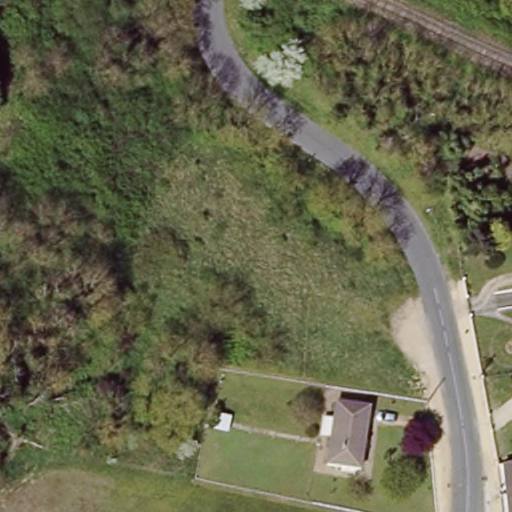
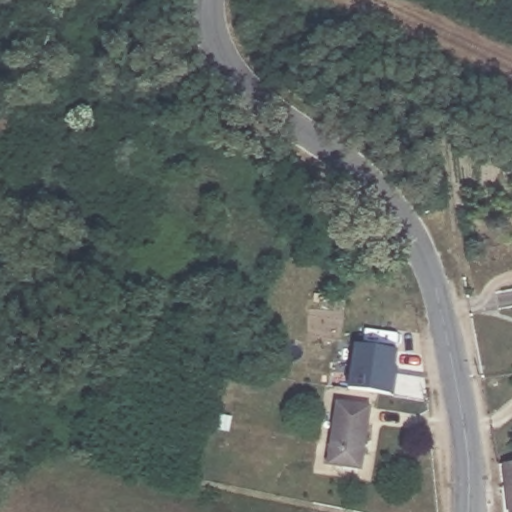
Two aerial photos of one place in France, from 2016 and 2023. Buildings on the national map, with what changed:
new [(389,396),(347,389),(354,346),(396,352),(389,396)]
unchanged [(376,406),(363,468),(332,461),(345,399),(376,406)]
unchanged [(512,460),(512,499),(507,461),(512,460)]

